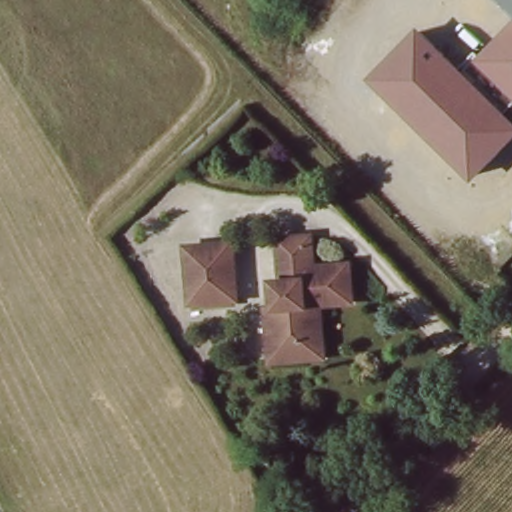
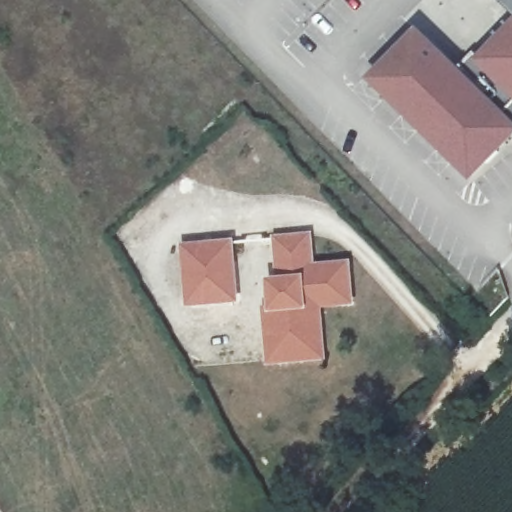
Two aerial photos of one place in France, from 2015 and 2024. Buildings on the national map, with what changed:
unchanged [(512,0),(512,14),(498,0),(512,0)]
unchanged [(512,119),(512,141),(472,182),(370,80),(420,27),(458,67),(473,51),(480,59),(512,25),(512,103),(504,110),(512,119)]
unchanged [(305,360),(270,365),(265,313),(271,312),(269,283),(279,282),(274,240),(303,237),(307,266),(346,262),(350,303),(322,306),(324,331),(326,358),(305,360)]
unchanged [(240,301),(191,306),(184,250),(233,245),(240,301)]
unchanged [(313,502),(304,512),(303,512),(299,505),(308,496),(313,502)]

